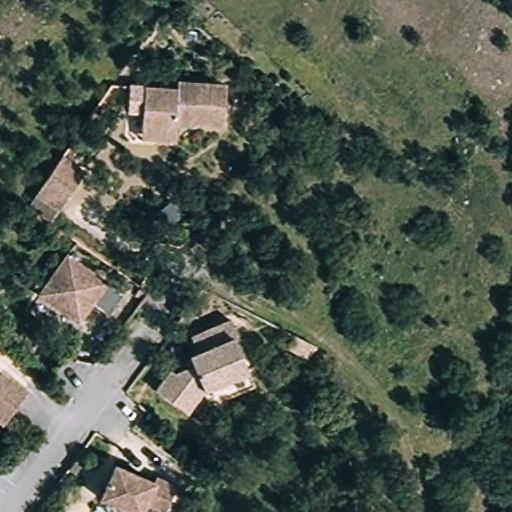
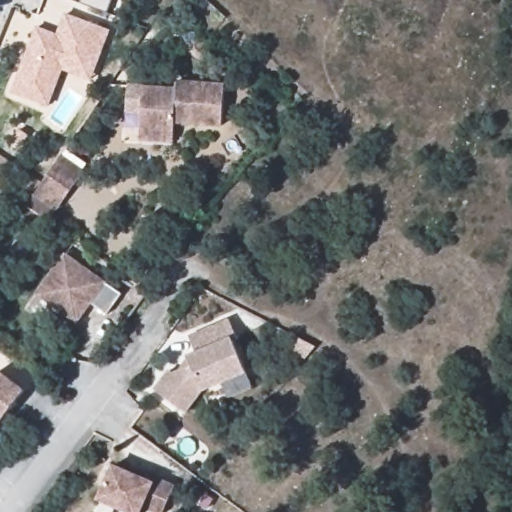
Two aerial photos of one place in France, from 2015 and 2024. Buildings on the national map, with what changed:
new [(107,10),(79,0),(110,0),(107,10)]
new [(57,33),(66,13),(111,30),(91,81),(64,70),(50,107),(12,92),(38,27),(57,33)]
unchanged [(136,129),(139,120),(151,79),(183,88),(185,80),(231,94),(218,134),(175,120),(172,130),(169,139),(136,129)]
unchanged [(69,172),(81,180),(56,219),(37,206),(33,204),(58,165),(69,172)]
unchanged [(77,321),(38,292),(70,255),(120,294),(104,313),(96,307),(93,303),(77,321)]
unchanged [(167,363),(171,367),(193,361),(191,354),(199,350),(193,335),(233,319),(241,336),(236,338),(248,367),(201,383),(183,405),(151,382),(167,363)]
unchanged [(28,393),(3,426),(0,423),(0,377),(2,374),(28,393)]
unchanged [(158,476),(176,484),(164,512),(111,512),(99,506),(117,466),(154,483),(158,476)]

